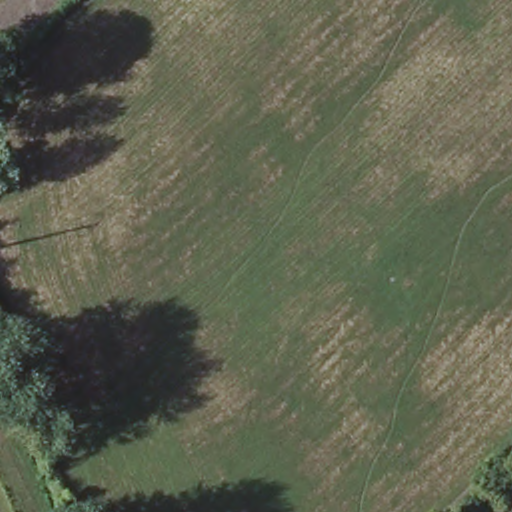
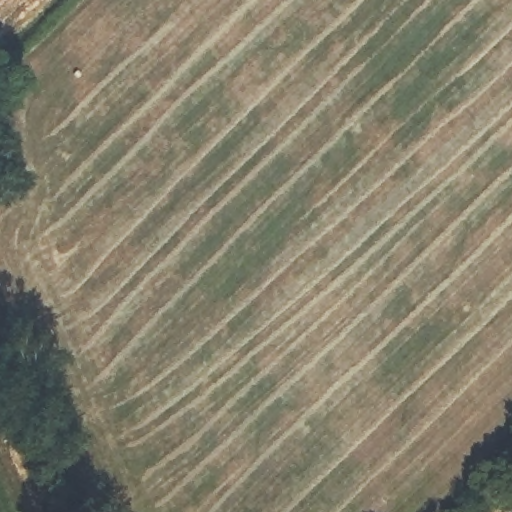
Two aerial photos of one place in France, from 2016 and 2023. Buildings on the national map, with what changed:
[]

